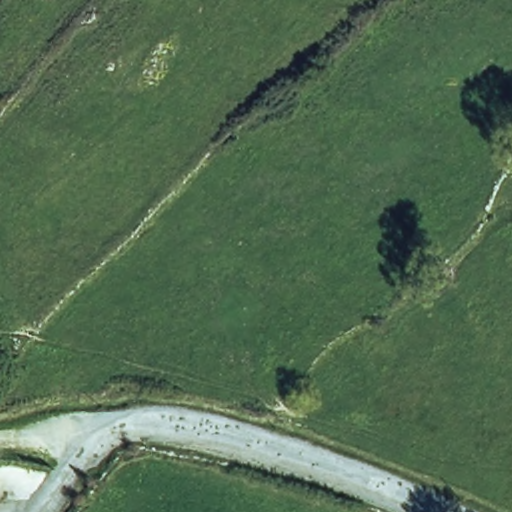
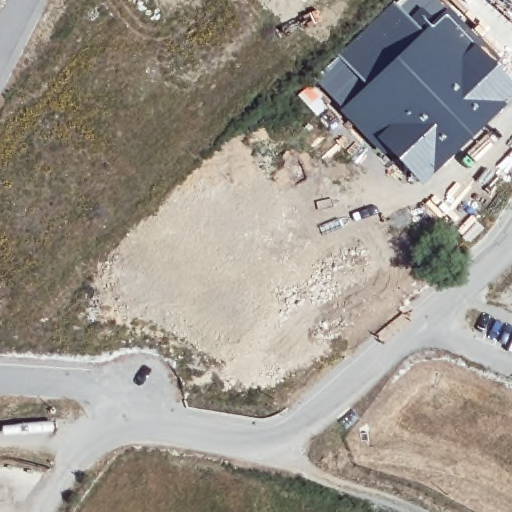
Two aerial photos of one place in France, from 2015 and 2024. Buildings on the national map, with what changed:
new [(512,82),(512,91),(500,102),(505,107),(422,187),(390,153),(384,157),(340,110),(449,6),(500,59),(497,66),(512,82)]

